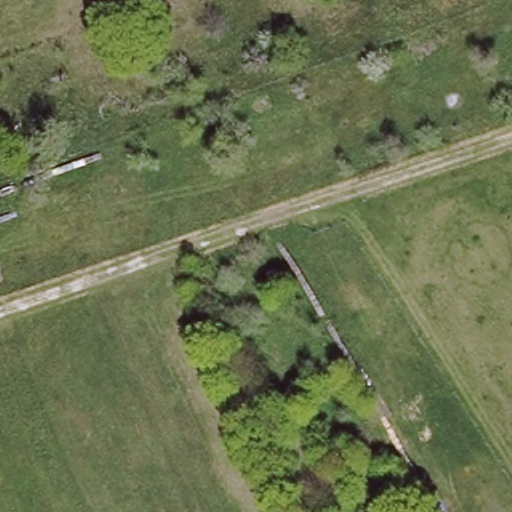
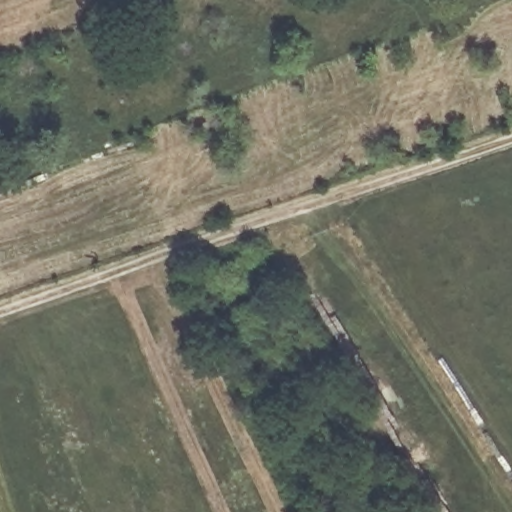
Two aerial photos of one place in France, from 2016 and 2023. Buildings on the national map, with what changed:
[]

